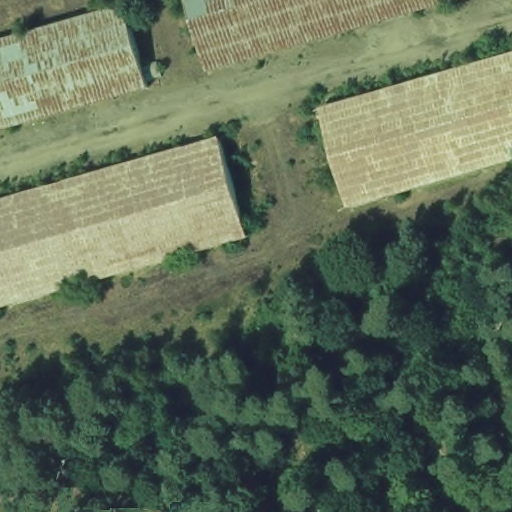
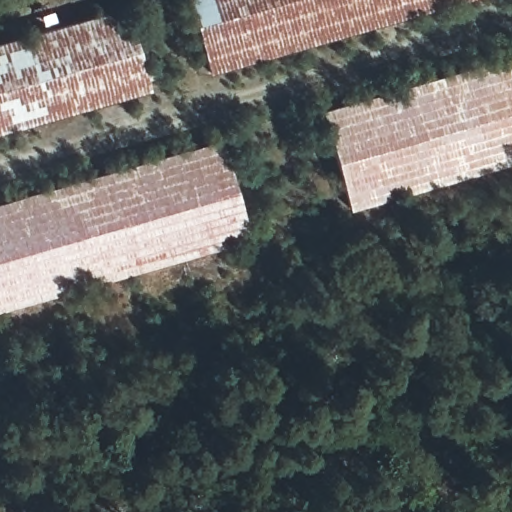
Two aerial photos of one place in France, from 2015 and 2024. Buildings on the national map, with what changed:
unchanged [(191,0),(474,0),(212,74),(191,0)]
unchanged [(154,91),(0,136),(0,43),(130,6),(154,91)]
unchanged [(512,56),(512,165),(352,212),(324,110),(512,56)]
unchanged [(0,202),(228,138),(257,241),(0,312),(0,202)]

